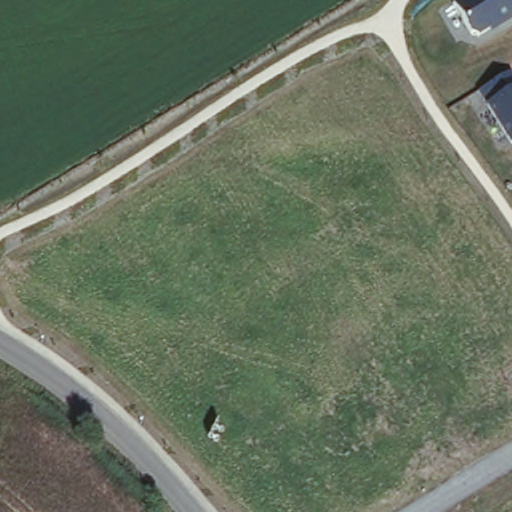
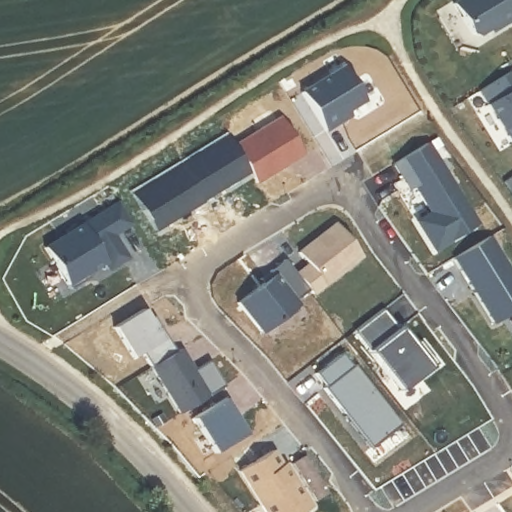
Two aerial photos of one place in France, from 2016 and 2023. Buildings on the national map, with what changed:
unchanged [(455,1),(458,0),(512,0),(512,17),(475,37),(455,1)]
new [(342,62),(365,100),(346,111),(350,117),(327,131),(301,90),(342,62)]
unchanged [(478,94),(512,73),(512,143),(509,145),(478,94)]
new [(283,113),(306,155),(258,184),(235,142),(283,113)]
new [(416,217),(426,210),(395,165),(428,142),(479,224),(439,251),(416,217)]
new [(116,204),(134,229),(117,239),(127,256),(71,290),(43,247),(116,204)]
new [(294,272),(304,264),(296,255),(337,224),(361,257),(311,295),(308,291),(294,272)]
new [(489,235),(512,271),(512,312),(495,322),(451,257),(489,235)]
new [(273,274),(271,271),(284,260),(294,272),(308,291),(294,300),(298,305),(261,334),(236,303),(273,274)]
new [(146,307),(170,348),(176,345),(193,372),(211,361),(224,384),(180,412),(141,353),(132,361),(109,328),(146,307)]
new [(341,352),(399,422),(373,446),(315,379),(341,352)]
new [(226,396),(249,432),(215,455),(191,418),(226,396)]
new [(309,504),(296,512),(265,512),(235,470),(272,449),(309,504)]

